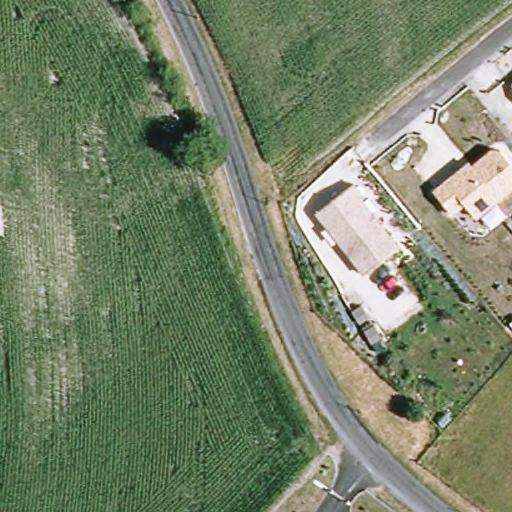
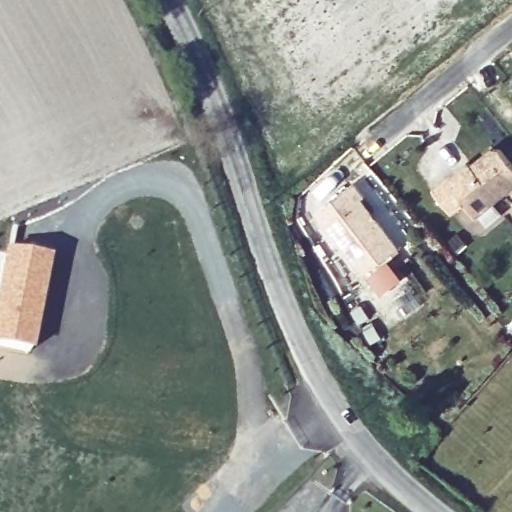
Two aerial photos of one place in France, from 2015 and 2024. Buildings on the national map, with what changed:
unchanged [(503,148),(512,159),(512,191),(479,217),(467,204),(453,214),(435,189),(470,158),(474,164),(493,148),(503,148)]
unchanged [(370,196),(365,198),(404,247),(370,273),(322,211),(359,182),(370,196)]
new [(51,258),(31,353),(0,346),(0,256),(1,249),(51,258)]

